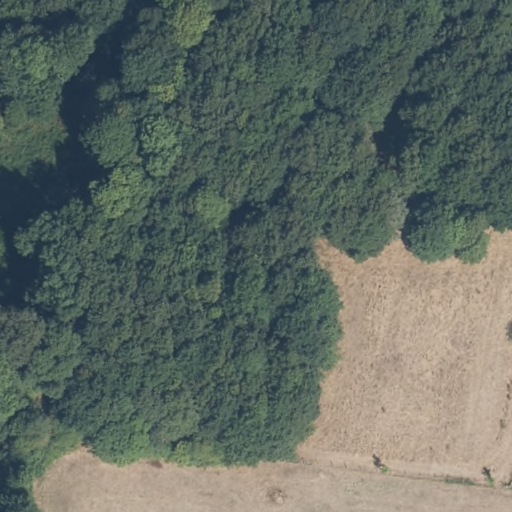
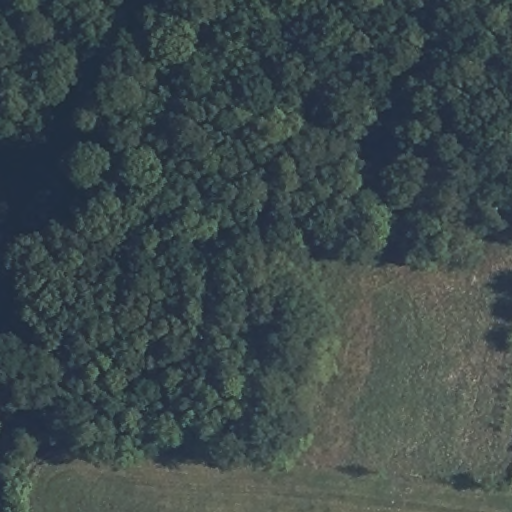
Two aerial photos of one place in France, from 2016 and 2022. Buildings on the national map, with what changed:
[]

